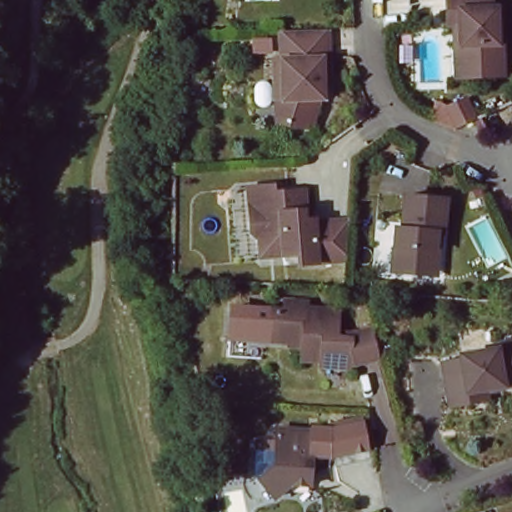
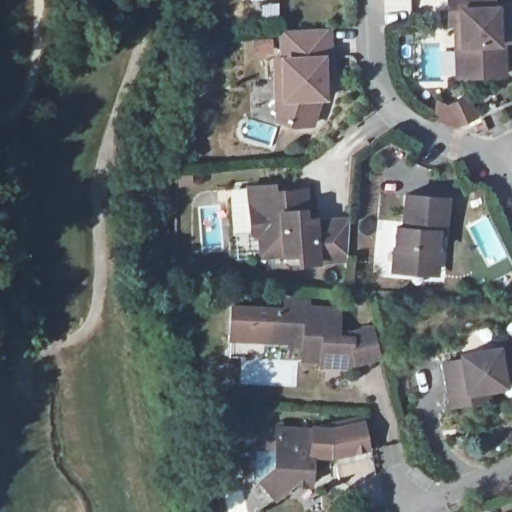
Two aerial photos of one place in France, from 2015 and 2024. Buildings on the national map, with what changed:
unchanged [(448,24),(447,0),(492,0),(492,6),(496,6),(497,41),(502,41),(504,74),(467,76),(457,76),(455,23),(448,24)]
unchanged [(274,64),(282,63),(281,35),(283,35),(329,33),(330,63),(330,81),(323,82),(324,102),(312,129),(294,130),(277,124),(275,84),(274,64)]
unchanged [(284,259),(283,254),(259,256),(258,238),(250,231),(247,186),(272,185),(273,196),(281,196),(285,191),(305,189),(306,206),(304,209),(304,219),(314,218),(314,222),(349,220),(345,260),(299,263),(288,264),(284,259)]
unchanged [(417,273),(399,272),(392,271),(394,251),(395,226),(402,227),(405,194),(446,198),(444,232),(442,249),(439,249),(437,268),(437,274),(417,273)]
unchanged [(378,357),(349,367),(320,365),(321,360),(301,359),(302,343),(272,340),(274,309),(284,310),(284,300),(306,302),(306,308),(338,310),(336,332),(352,332),(370,328),(378,357)]
unchanged [(469,401),(450,404),(442,362),(462,359),(460,354),(497,348),(496,344),(512,341),(512,383),(504,384),(484,388),(486,398),(469,401)]
unchanged [(274,496),(258,478),(274,465),(277,428),(312,430),(312,427),(332,428),(331,455),(312,454),(309,484),(290,482),(274,496)]

